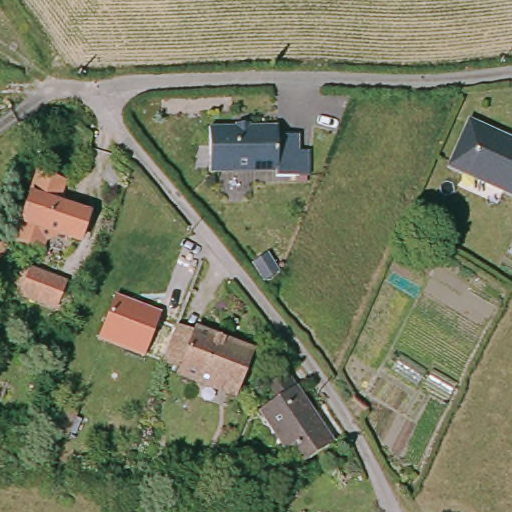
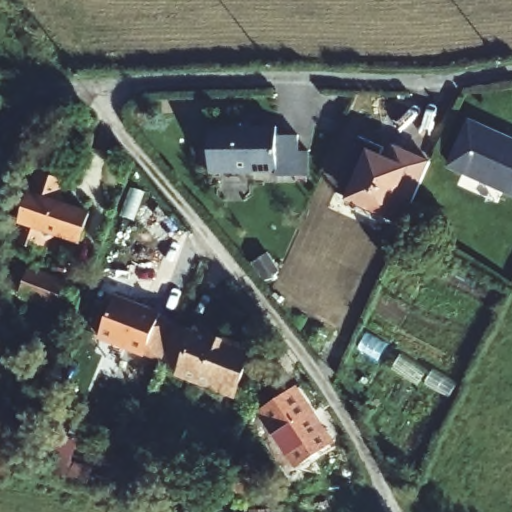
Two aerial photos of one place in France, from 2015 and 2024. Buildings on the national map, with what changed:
unchanged [(512,187),(451,161),(471,116),(512,133),(512,187)]
unchanged [(311,167),(301,167),(298,167),(279,167),(279,161),(213,161),(213,124),(213,120),(281,119),(281,126),(301,126),(301,142),(311,142),(311,167)]
new [(348,196),(337,191),(360,138),(382,148),(391,157),(396,145),(432,161),(403,224),(346,199),(348,196)]
unchanged [(60,172),(56,184),(62,197),(85,205),(77,231),(53,223),(40,230),(38,239),(13,232),(20,212),(18,212),(28,184),(29,185),(36,164),(60,172)]
unchanged [(58,302),(22,290),(22,289),(11,285),(19,262),(30,266),(66,278),(58,302)]
unchanged [(144,358),(98,341),(115,295),(161,312),(144,358)]
unchanged [(197,328),(198,325),(256,346),(239,389),(181,368),(183,363),(166,357),(179,322),(197,328)]
unchanged [(298,464),(258,415),(269,405),(264,393),(285,376),(312,412),(307,417),(316,430),(323,426),(331,440),(313,452),(304,457),(298,464)]
new [(67,412),(65,417),(68,418),(63,433),(66,435),(63,445),(71,448),(61,476),(44,470),(46,464),(35,461),(55,407),(67,412)]

